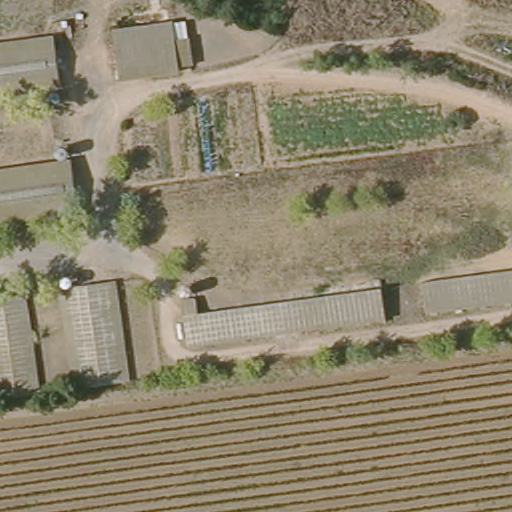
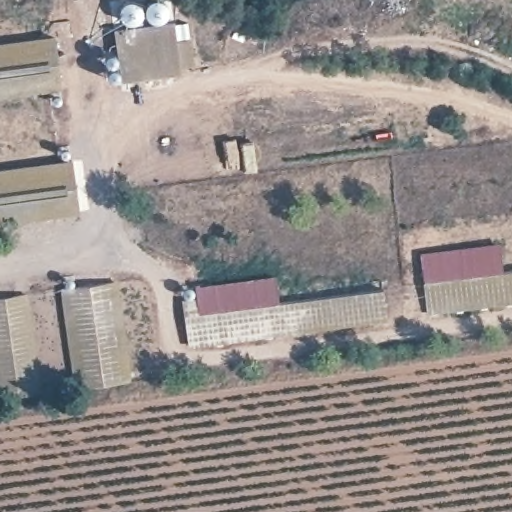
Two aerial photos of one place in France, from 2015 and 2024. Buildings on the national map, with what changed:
unchanged [(176,17),(188,71),(123,78),(116,27),(176,17)]
unchanged [(0,96),(0,52),(63,46),(68,89),(0,96)]
unchanged [(0,217),(0,172),(65,165),(70,207),(0,217)]
new [(427,281),(423,281),(419,252),(498,241),(503,270),(427,281)]
unchanged [(512,268),(512,301),(432,312),(427,281),(512,268)]
new [(198,307),(196,285),(274,276),(277,300),(198,307)]
unchanged [(113,367),(79,372),(67,291),(101,286),(113,367)]
unchanged [(385,315),(187,337),(183,308),(384,289),(385,315)]
unchanged [(1,387),(0,381),(0,301),(25,297),(39,381),(1,387)]

